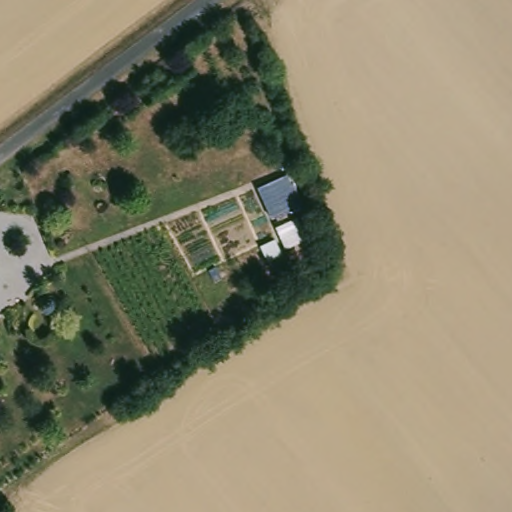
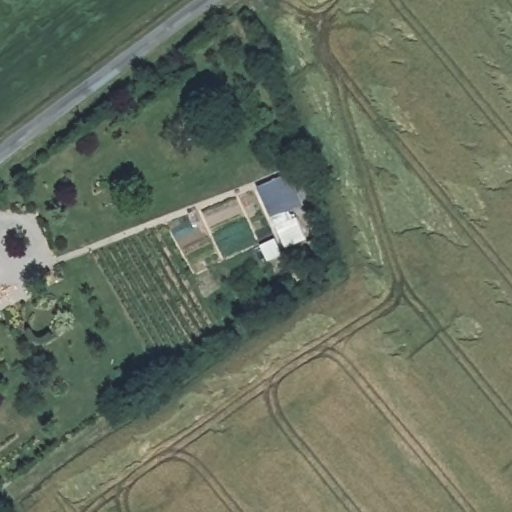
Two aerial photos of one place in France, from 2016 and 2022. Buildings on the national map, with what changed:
unchanged [(296,173),(304,202),(259,218),(256,189),(296,173)]

